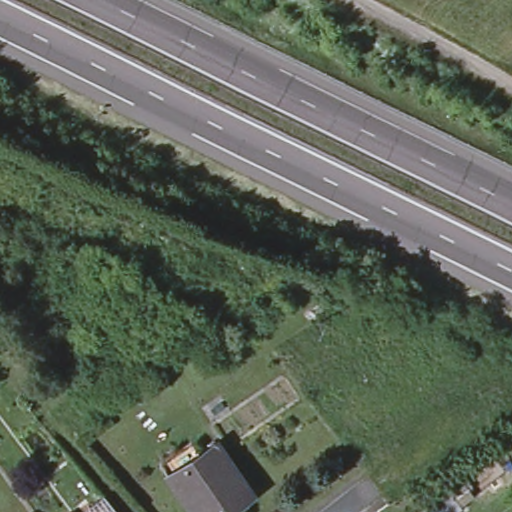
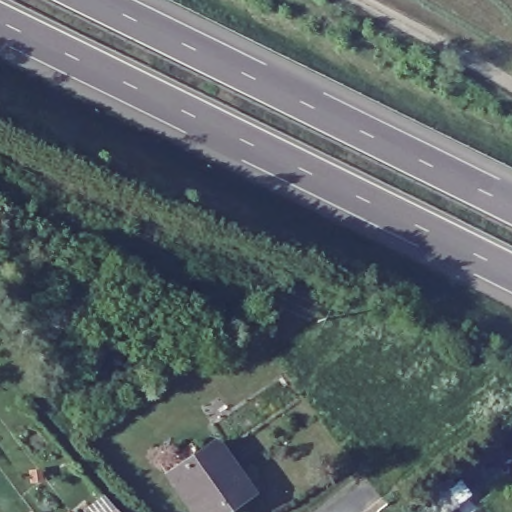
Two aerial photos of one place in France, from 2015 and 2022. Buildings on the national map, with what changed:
unchanged [(252,494),(226,512),(220,512),(218,510),(214,512),(195,512),(170,476),(217,443),(252,494)]

